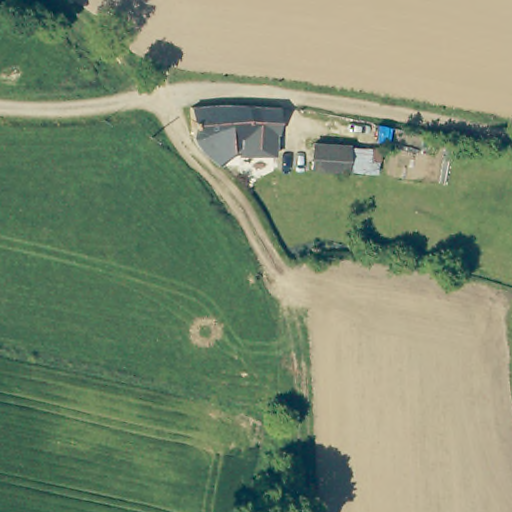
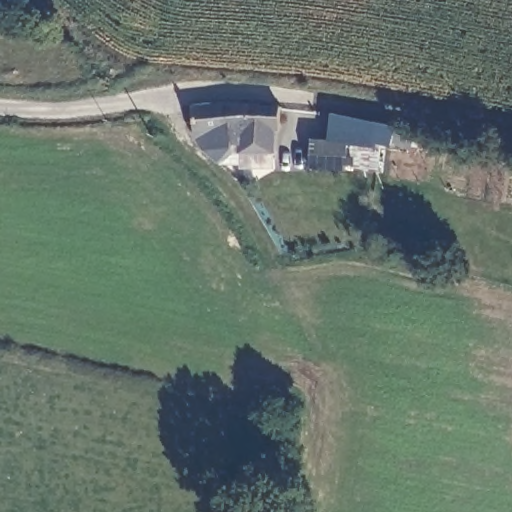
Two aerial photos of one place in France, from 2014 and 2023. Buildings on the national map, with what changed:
unchanged [(231,104),(278,110),(282,110),(278,132),(276,132),(273,156),(237,151),(239,142),(232,141),(231,151),(219,159),(199,150),(194,135),(192,130),(195,100),(231,104)]
new [(365,145),(348,143),(327,140),(331,114),(394,126),(392,147),(372,145),(365,145)]
unchanged [(311,139),(348,143),(372,145),(371,170),(347,169),(311,165),(311,139)]

